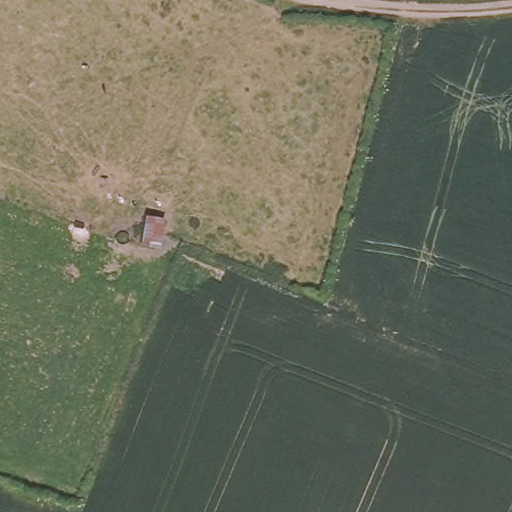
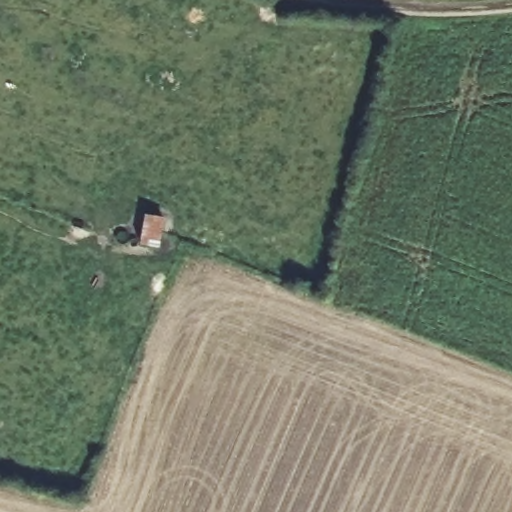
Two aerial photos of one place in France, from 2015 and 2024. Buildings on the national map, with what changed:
unchanged [(139,242),(144,204),(168,209),(163,249),(139,242)]

